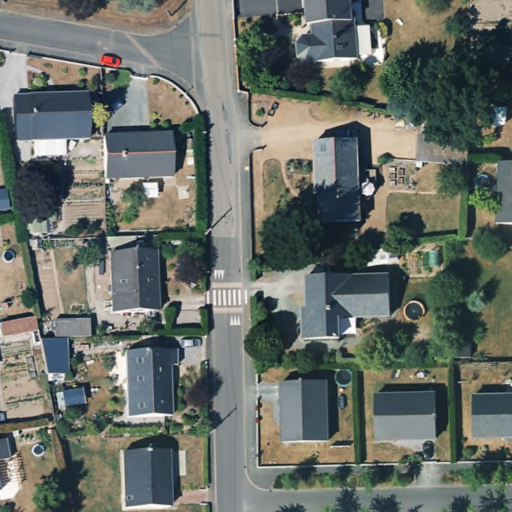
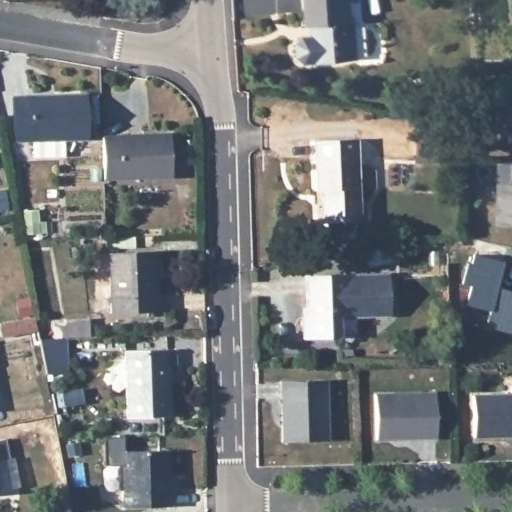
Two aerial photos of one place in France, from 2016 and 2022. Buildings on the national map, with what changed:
unchanged [(359,61),(355,61),(316,63),(305,64),(298,58),(297,45),(303,38),(314,37),(313,26),(306,27),(305,0),(349,0),(350,22),(357,22),(359,61)]
unchanged [(84,98),(84,143),(16,142),(11,124),(12,96),(84,98)]
unchanged [(468,136),(465,163),(416,159),(419,131),(468,136)]
unchanged [(167,138),(170,178),(101,182),(100,141),(167,138)]
unchanged [(321,190),(317,190),(315,141),(357,140),(360,221),(330,222),(322,223),(321,190)]
unchanged [(503,165),(512,165),(512,227),(500,227),(503,165)]
unchanged [(150,249),(154,307),(109,311),(105,251),(150,249)]
new [(490,311),(465,304),(470,286),(461,283),(466,263),(470,264),(473,255),(502,263),(496,287),(512,291),(512,334),(485,326),(490,311)]
unchanged [(357,279),(359,283),(392,283),(393,318),(342,319),(342,340),(306,340),(306,319),(312,319),(312,279),(357,279)]
unchanged [(37,315),(40,329),(5,335),(2,321),(37,315)]
unchanged [(57,320),(95,319),(95,335),(65,336),(65,369),(49,370),(43,337),(58,337),(57,320)]
unchanged [(176,351),(177,366),(168,367),(171,418),(129,420),(125,354),(176,351)]
unchanged [(323,390),(325,449),(279,450),(278,390),(323,390)]
unchanged [(432,397),(433,442),(373,442),(373,397),(432,397)]
unchanged [(512,438),(475,439),(475,398),(512,397),(512,438)]
unchanged [(5,437),(9,458),(0,459),(0,438),(5,437)]
unchanged [(164,452),(166,508),(124,510),(120,454),(164,452)]
unchanged [(1,488),(0,488),(0,483),(1,488)]

